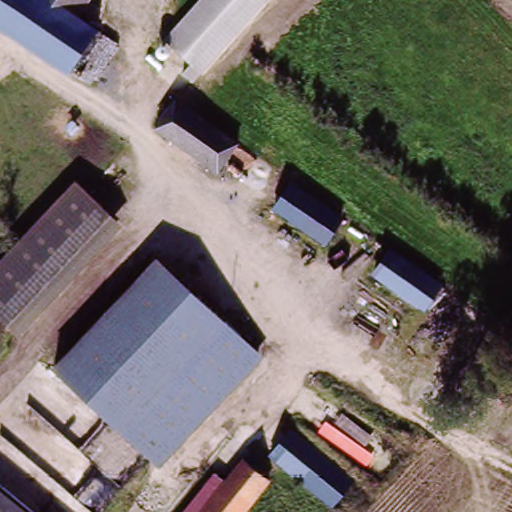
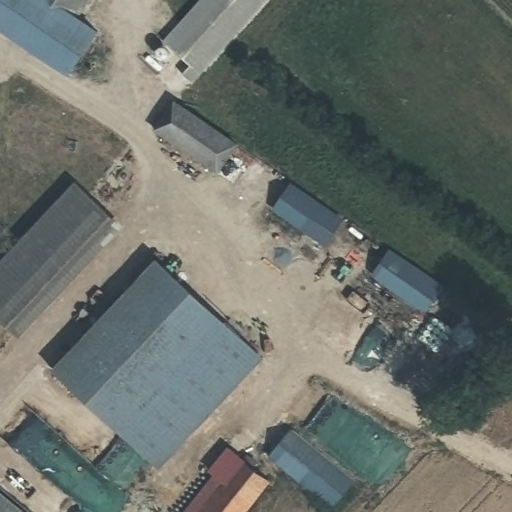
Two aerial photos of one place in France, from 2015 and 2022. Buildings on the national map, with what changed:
unchanged [(64,71),(0,27),(0,0),(50,0),(76,18),(95,31),(64,71)]
unchanged [(50,0),(90,0),(76,18),(50,0)]
unchanged [(181,74),(188,65),(164,41),(201,0),(267,0),(192,83),(181,74)]
unchanged [(176,102),(238,146),(220,169),(158,124),(176,102)]
unchanged [(291,180),(345,217),(323,251),(267,214),(291,180)]
unchanged [(77,196),(116,228),(20,335),(0,317),(0,280),(77,196)]
unchanged [(372,239),(442,286),(427,309),(355,263),(372,239)]
unchanged [(124,436),(58,375),(155,263),(224,323),(127,433),(124,436)]
unchanged [(257,351),(157,460),(127,433),(224,323),(257,351)]
unchanged [(293,436),(348,485),(326,509),(270,460),(293,436)]
unchanged [(243,459),(270,482),(243,512),(198,512),(243,459)]
unchanged [(35,512),(0,512),(0,483),(35,512)]

